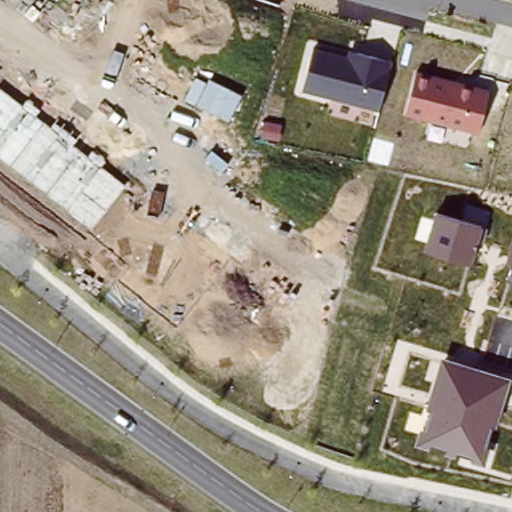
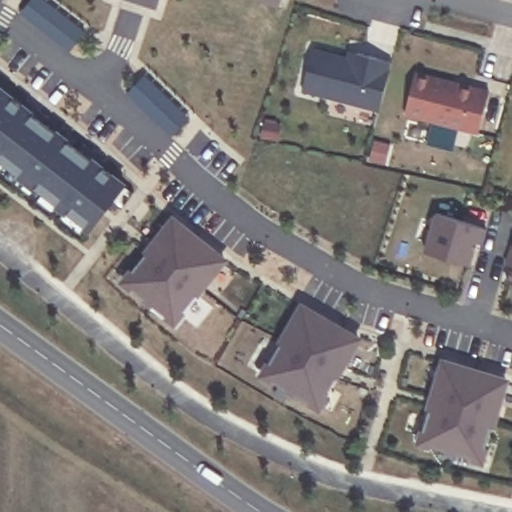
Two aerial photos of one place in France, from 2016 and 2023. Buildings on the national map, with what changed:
new [(45,0),(53,6),(86,31),(70,51),(21,12),(31,0),(45,0)]
new [(259,0),(282,0),(280,6),(259,0)]
unchanged [(312,51),(352,62),(355,51),(393,62),(380,112),(300,91),(312,51)]
unchanged [(416,71),(490,92),(478,135),(405,115),(416,71)]
new [(145,75),(162,92),(190,118),(173,136),(127,93),(145,75)]
unchanged [(0,87),(23,105),(27,98),(41,109),(37,115),(50,126),(56,121),(77,139),(72,144),(86,155),(91,149),(107,160),(101,165),(127,186),(92,229),(0,159),(0,87)]
unchanged [(435,210),(490,228),(486,245),(480,244),(472,267),(422,250),(435,210)]
new [(174,219),(225,260),(175,322),(124,282),(174,219)]
unchanged [(512,235),(512,286),(504,283),(509,268),(503,265),(512,235)]
new [(302,306),(359,339),(319,407),(263,375),(302,306)]
unchanged [(485,466),(413,445),(440,355),(512,377),(512,379),(485,466)]

